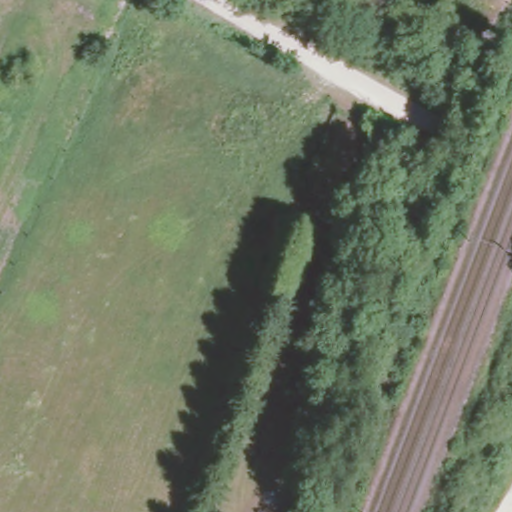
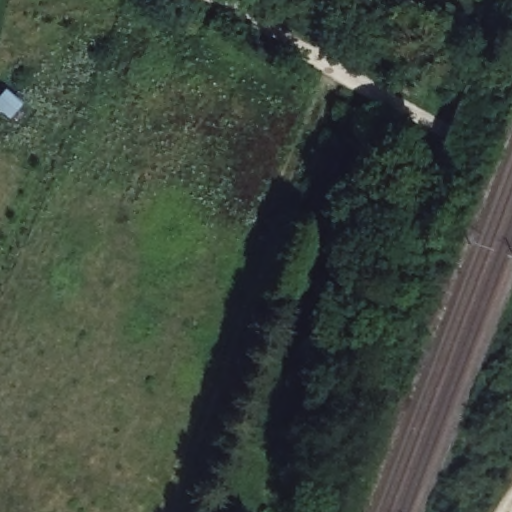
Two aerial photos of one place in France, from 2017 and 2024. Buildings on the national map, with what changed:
[]

